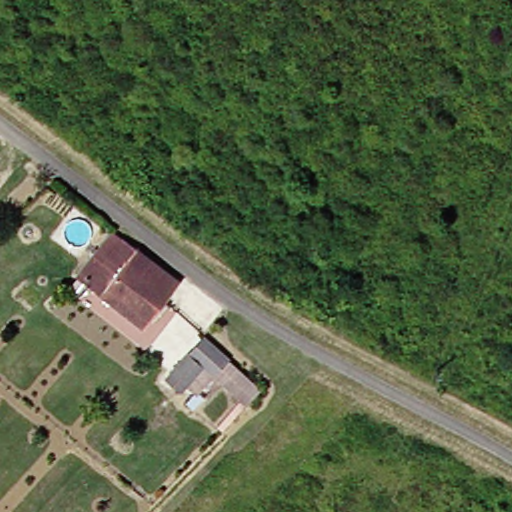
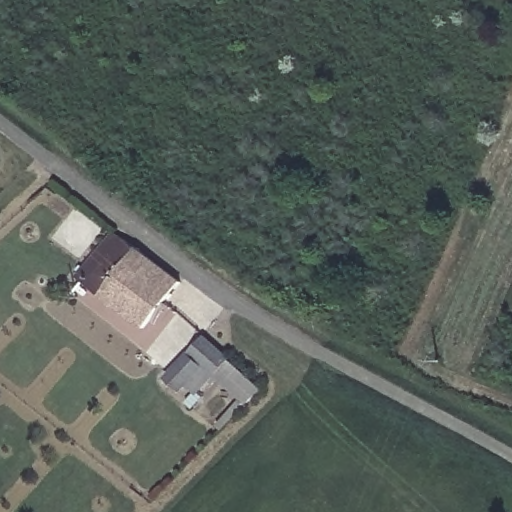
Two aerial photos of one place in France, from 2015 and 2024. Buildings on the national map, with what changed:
unchanged [(136,324),(75,275),(96,245),(107,230),(114,235),(172,279),(136,324)]
unchanged [(217,376),(205,391),(191,379),(186,386),(172,374),(207,339),(265,391),(250,406),(217,376)]

